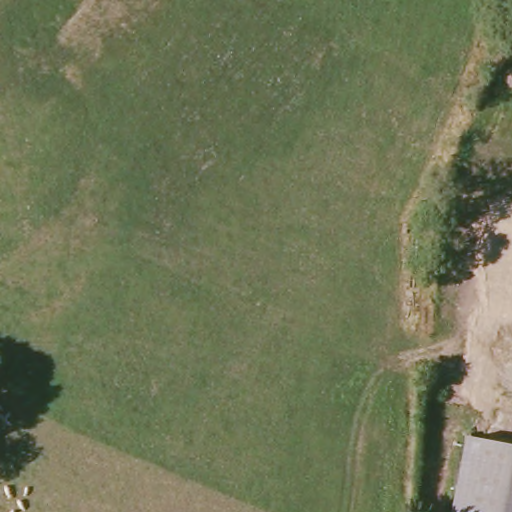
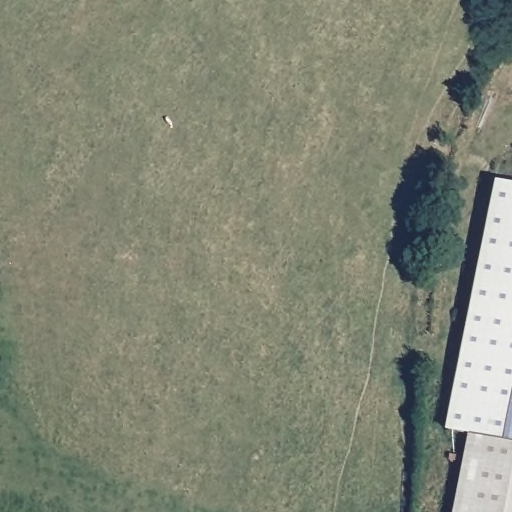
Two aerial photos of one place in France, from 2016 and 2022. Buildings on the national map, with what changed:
new [(491,184),(512,188),(512,447),(467,438),(441,431),(491,184)]
unchanged [(512,447),(512,512),(452,512),(467,438),(512,447)]

